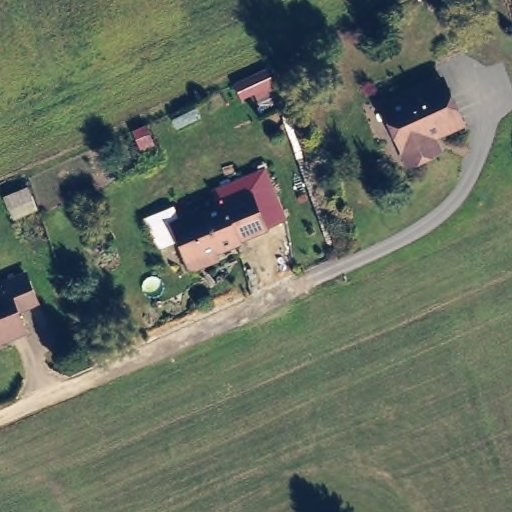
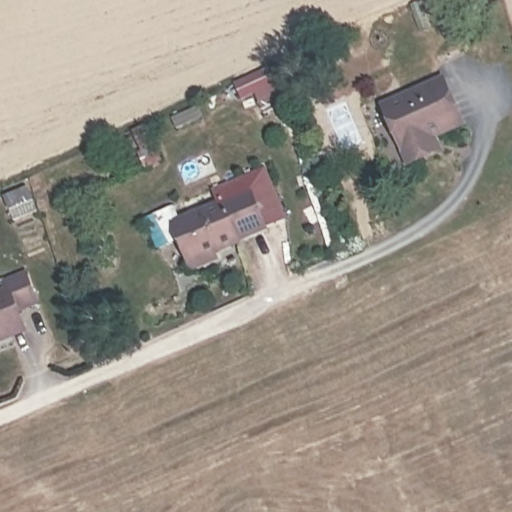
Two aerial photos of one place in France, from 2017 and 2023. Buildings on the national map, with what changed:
unchanged [(267,67),(281,104),(261,112),(255,97),(242,103),(236,79),(267,67)]
unchanged [(403,161),(399,150),(378,104),(439,78),(460,124),(431,137),(436,148),(403,161)]
unchanged [(15,207),(10,192),(39,182),(44,196),(15,207)]
unchanged [(218,253),(221,259),(192,271),(190,262),(172,225),(248,189),(262,227),(233,241),(234,246),(218,253)]
unchanged [(0,285),(0,280),(25,273),(36,307),(20,312),(22,319),(27,335),(10,341),(0,344),(0,293),(2,292),(0,285)]

